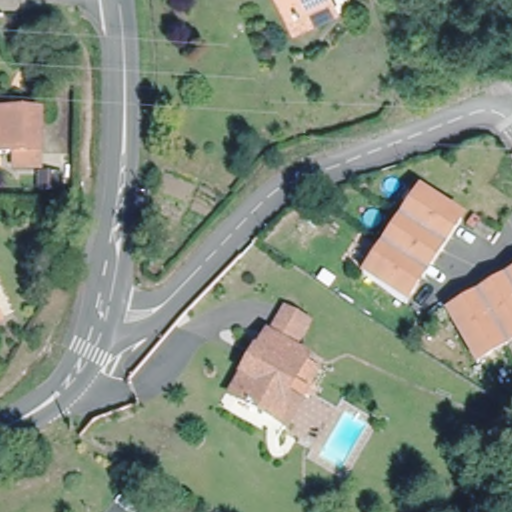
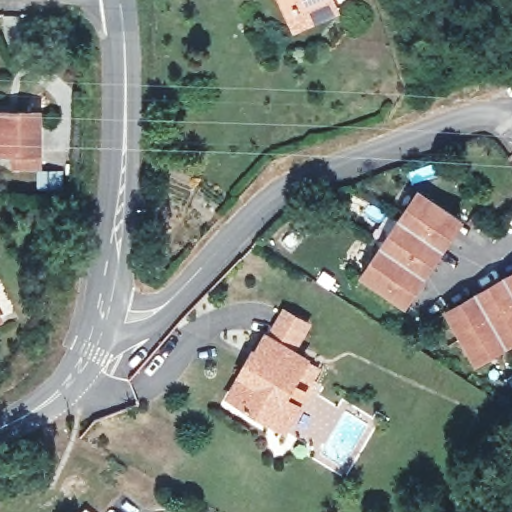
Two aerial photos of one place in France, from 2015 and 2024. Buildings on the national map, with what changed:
unchanged [(304,0),(286,7),(283,0),(304,0)]
unchanged [(40,167),(17,167),(16,156),(0,155),(0,114),(40,114),(40,167)]
unchanged [(41,180),(57,180),(57,195),(41,195),(41,180)]
unchanged [(409,302),(366,273),(422,192),(465,221),(409,302)]
unchanged [(451,311),(512,276),(512,346),(480,364),(451,311)]
unchanged [(273,425),(241,406),(233,402),(235,398),(251,371),(273,335),(285,314),(309,327),(297,349),(312,357),(298,382),(312,391),(303,407),(288,433),(273,425)]

